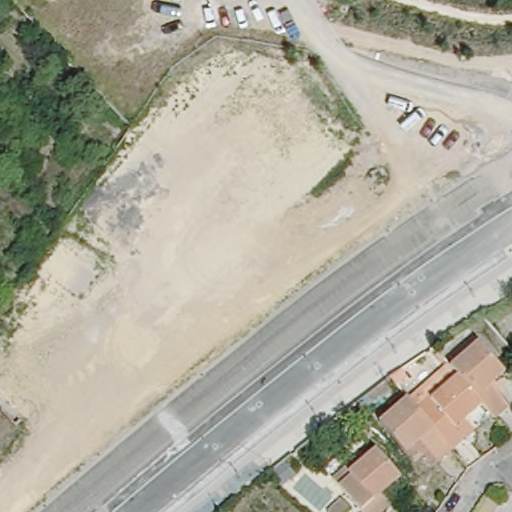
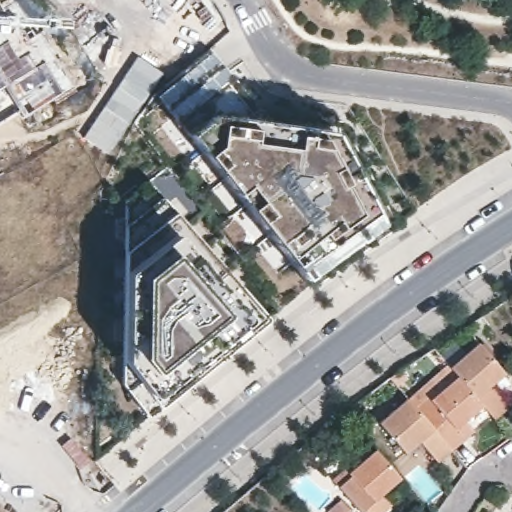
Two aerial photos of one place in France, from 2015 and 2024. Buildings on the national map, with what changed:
new [(14,0),(36,36),(43,32),(76,86),(25,119),(20,111),(0,124),(0,4),(8,0),(14,0)]
new [(212,50),(223,65),(262,118),(338,121),(393,224),(310,286),(302,275),(291,264),(202,150),(189,130),(174,106),(161,91),(212,50)]
new [(121,360),(123,270),(126,202),(151,183),(175,213),(267,317),(160,405),(149,416),(123,383),(121,360)]
unchanged [(482,405),(455,374),(448,365),(475,341),(502,372),(490,385),(508,406),(494,420),(482,405)]
unchanged [(465,438),(452,450),(414,406),(427,394),(437,384),(440,387),(455,374),(482,405),(465,420),(474,430),(465,438)]
unchanged [(419,451),(410,460),(404,453),(378,422),(405,397),(414,406),(452,450),(438,461),(432,467),(419,451)]
demolished [(32,512),(25,512),(0,484),(0,480),(58,427),(88,460),(32,512)]
unchanged [(390,512),(361,512),(335,483),(348,472),(360,461),(364,465),(378,453),(403,480),(387,495),(397,506),(390,512)]
unchanged [(351,512),(334,512),(344,504),(351,512)]

